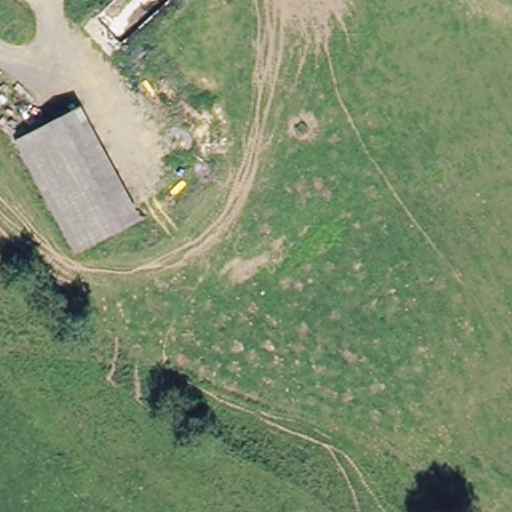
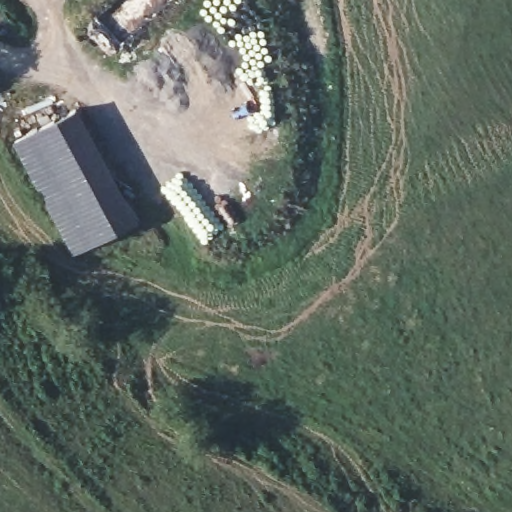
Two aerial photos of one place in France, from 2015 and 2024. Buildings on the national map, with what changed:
unchanged [(140,217),(74,255),(15,142),(80,105),(140,217)]

